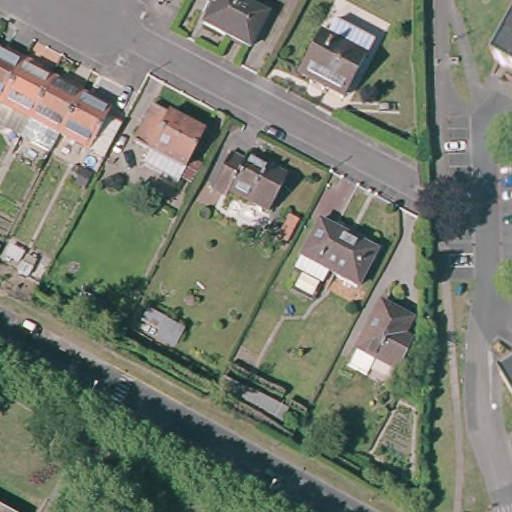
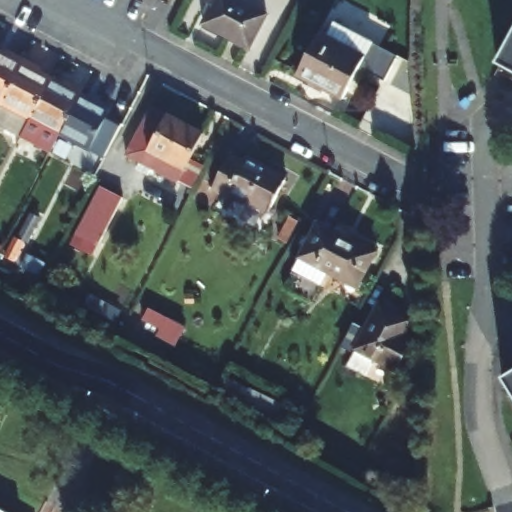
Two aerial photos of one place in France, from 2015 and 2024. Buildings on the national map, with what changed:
unchanged [(199,22),(211,0),(240,0),(264,13),(244,48),(199,22)]
unchanged [(339,98),(292,73),(315,31),(360,56),(339,98)]
unchanged [(512,38),(512,77),(495,68),(512,38)]
unchanged [(4,113),(0,110),(0,59),(8,64),(12,58),(29,66),(4,113)]
unchanged [(22,146),(0,134),(0,120),(4,113),(29,66),(45,75),(42,81),(54,89),(22,146)]
unchanged [(50,161),(22,146),(54,89),(66,95),(70,89),(85,96),(82,103),(60,142),(50,161)]
unchanged [(112,118),(107,128),(121,134),(107,160),(104,165),(60,142),(82,103),(112,118)]
unchanged [(152,109),(205,138),(179,184),(142,165),(150,153),(133,144),(152,109)]
unchanged [(230,195),(227,201),(211,192),(231,156),(245,164),(247,160),(286,182),(268,215),(230,195)]
new [(102,187),(124,199),(100,244),(77,232),(102,187)]
unchanged [(316,222),(375,253),(355,289),(332,276),(326,288),(292,269),(316,222)]
unchanged [(379,304),(410,320),(400,337),(408,340),(392,370),(355,349),(379,304)]
unchanged [(512,401),(497,379),(512,369),(512,401)]

